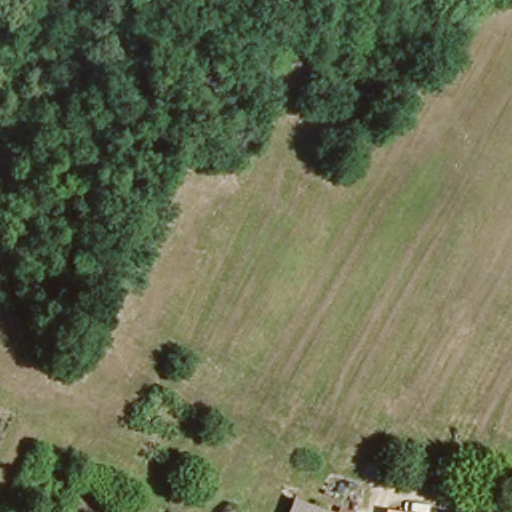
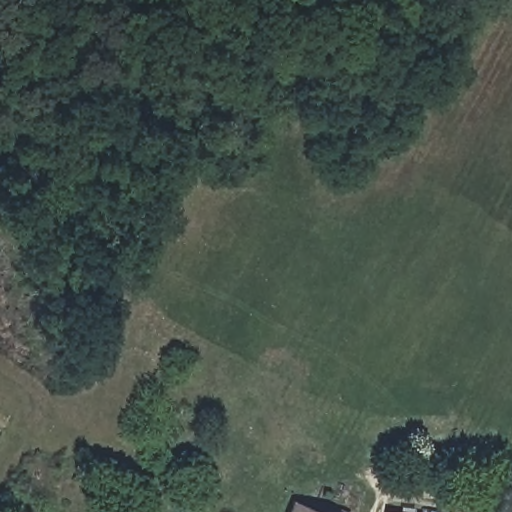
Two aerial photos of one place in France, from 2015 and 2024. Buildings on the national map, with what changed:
unchanged [(300,498),(330,512),(294,512),(300,498)]
unchanged [(390,504),(429,512),(389,512),(390,504)]

